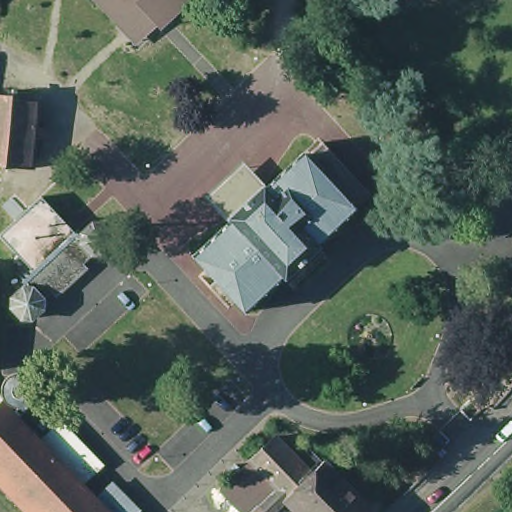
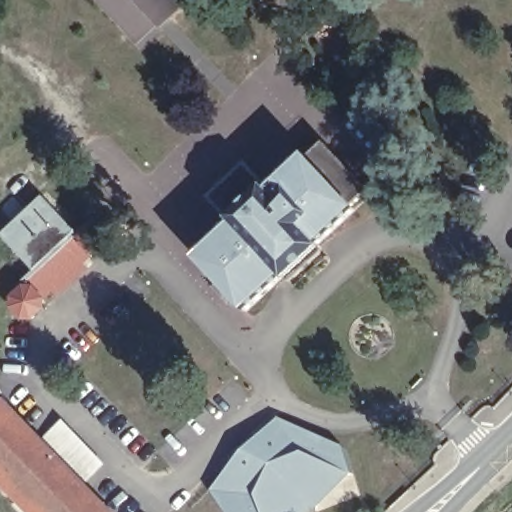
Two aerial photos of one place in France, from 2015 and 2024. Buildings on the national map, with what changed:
unchanged [(136,48),(89,0),(189,0),(136,48)]
unchanged [(343,79),(354,95),(342,102),(328,82),(340,74),(343,79)]
unchanged [(32,101),(41,102),(37,131),(46,132),(45,142),(37,142),(33,172),(0,170),(0,98),(32,101)]
unchanged [(305,257),(315,268),(280,300),(270,289),(232,324),(222,313),(217,319),(189,288),(195,283),(181,268),(220,233),(217,231),(230,218),(221,209),(240,193),(248,203),(252,198),(255,200),(308,151),(359,207),(305,257)]
unchanged [(91,262),(58,293),(53,288),(45,296),(44,305),(35,314),(23,315),(14,304),(15,295),(6,287),(19,274),(12,266),(30,248),(23,241),(56,210),(80,234),(93,222),(103,222),(113,233),(113,241),(103,250),(95,250),(86,257),(91,262)]
unchanged [(33,394),(32,399),(28,402),(24,403),(20,403),(15,400),(13,396),(12,392),(14,387),(17,384),(22,382),(26,383),(30,385),(33,389),(33,394)]
unchanged [(33,435),(86,491),(102,506),(101,507),(106,512),(37,512),(0,474),(0,426),(13,413),(34,435),(33,435)]
new [(236,453),(273,417),(339,448),(348,475),(312,509),(311,512),(219,512),(206,492),(236,453)]
unchanged [(50,419),(103,474),(87,490),(86,491),(33,435),(50,419)]
demolished [(237,480),(231,475),(240,466),(245,472),(280,439),(315,476),(327,463),(375,512),(295,512),(286,503),(278,512),(244,512),(225,492),(237,480)]
demolished [(134,512),(106,512),(101,507),(115,492),(134,512)]

